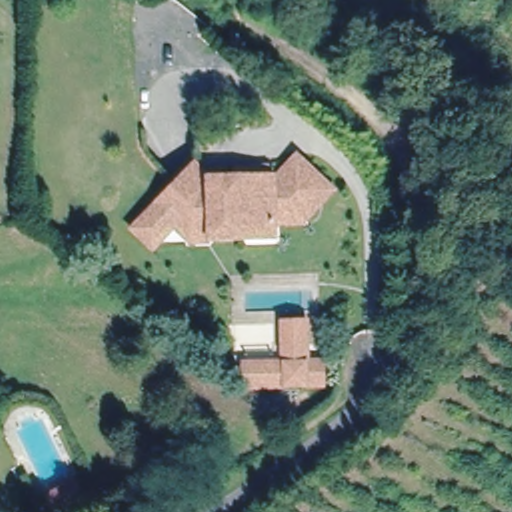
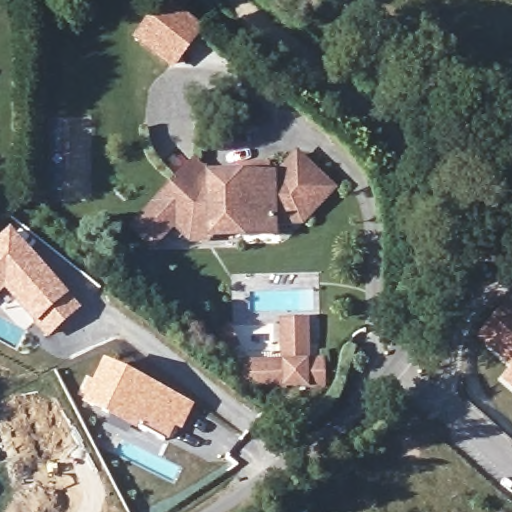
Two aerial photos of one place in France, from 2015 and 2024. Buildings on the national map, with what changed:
new [(134,40),(164,0),(165,0),(204,31),(175,69),(134,40)]
new [(91,120),(85,168),(87,194),(78,193),(69,161),(62,159),(61,169),(52,169),(51,119),(91,120)]
unchanged [(189,165),(203,177),(272,175),(291,155),(327,189),(305,215),(270,216),(269,235),(238,237),(237,229),(206,230),(206,233),(189,234),(174,220),(149,247),(129,230),(189,165)]
new [(10,228),(81,309),(47,338),(4,292),(0,296),(0,237),(10,228)]
new [(512,300),(512,391),(497,378),(506,368),(473,337),(509,297),(512,300)]
unchanged [(281,337),(311,335),(312,360),(328,359),(330,381),(252,386),(250,364),(283,362),(281,337)]
new [(104,361),(195,405),(181,431),(176,429),(168,442),(141,430),(139,434),(81,405),(104,361)]
unchanged [(74,474),(84,498),(57,512),(54,512),(42,490),(74,474)]

